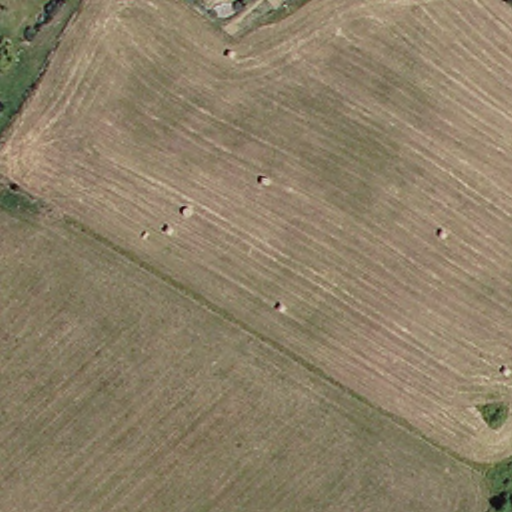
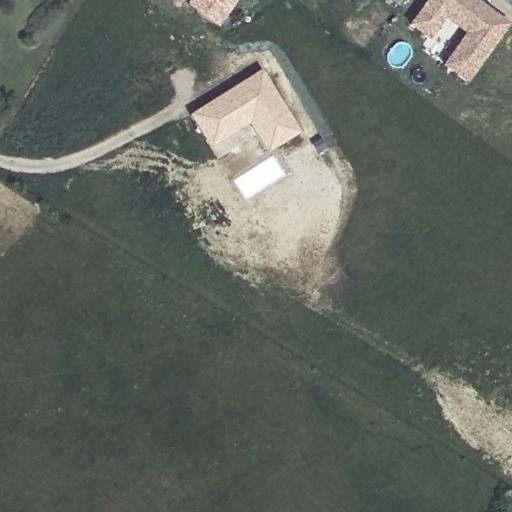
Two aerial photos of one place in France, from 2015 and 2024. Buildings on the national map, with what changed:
new [(466,0),(502,25),(462,83),(440,67),(462,36),(438,20),(424,40),(406,27),(425,0),(466,0)]
new [(205,140),(190,117),(232,90),(240,84),(259,71),(299,131),(268,151),(249,122),(223,140),(211,149),(205,140)]

